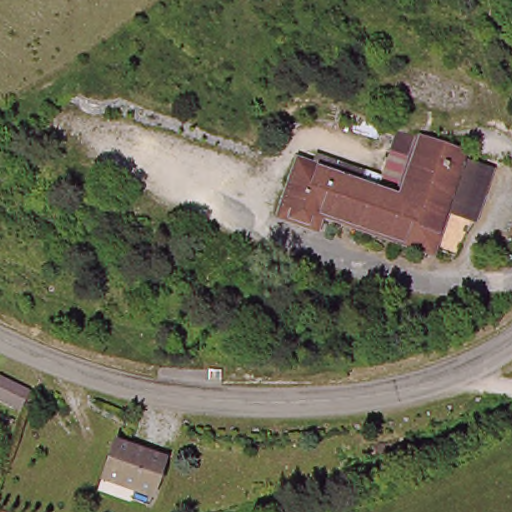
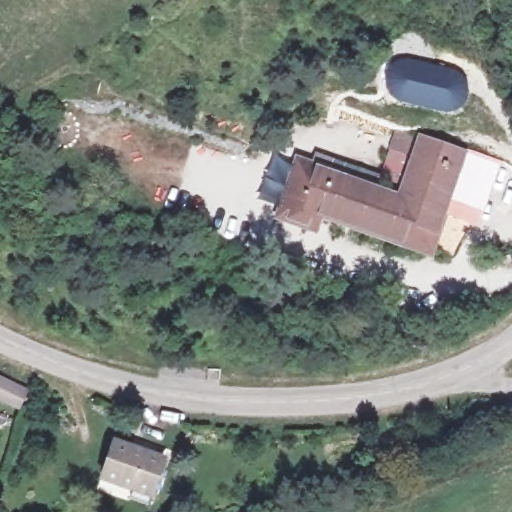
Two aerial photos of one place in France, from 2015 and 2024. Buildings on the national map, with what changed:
new [(457,72),(447,113),(398,101),(408,60),(457,72)]
unchanged [(296,158),(314,164),(318,154),(384,174),(399,129),(419,134),(469,151),(467,158),(496,167),(477,225),(449,216),(435,257),(324,220),(319,234),(276,219),(296,158)]
unchanged [(23,401),(20,409),(0,403),(0,383),(25,392),(23,401)]
unchanged [(106,484),(111,447),(162,454),(156,494),(106,484)]

